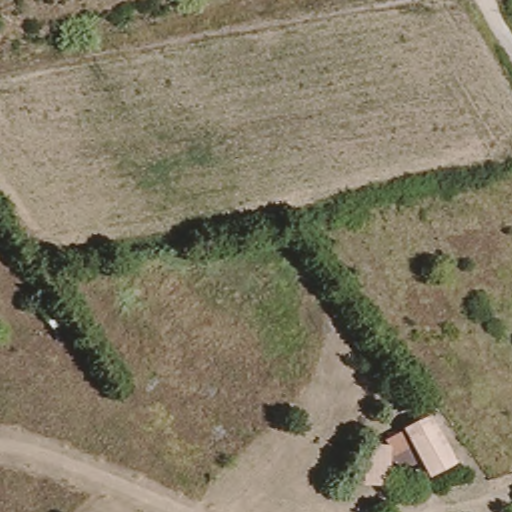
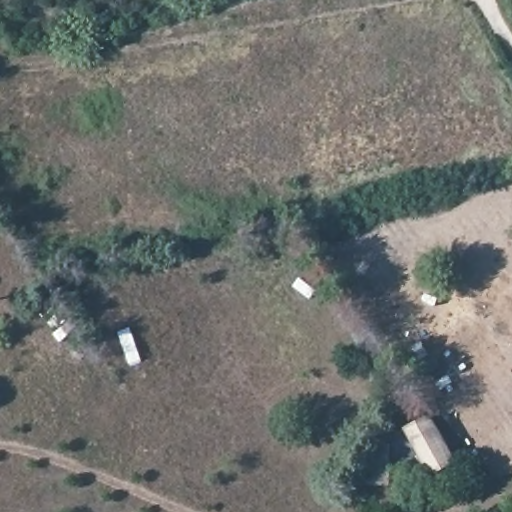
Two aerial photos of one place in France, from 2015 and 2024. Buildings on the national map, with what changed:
unchanged [(463,462),(430,480),(420,462),(397,475),(390,465),(390,487),(363,486),(364,447),(379,447),(402,430),(429,415),(463,462)]

